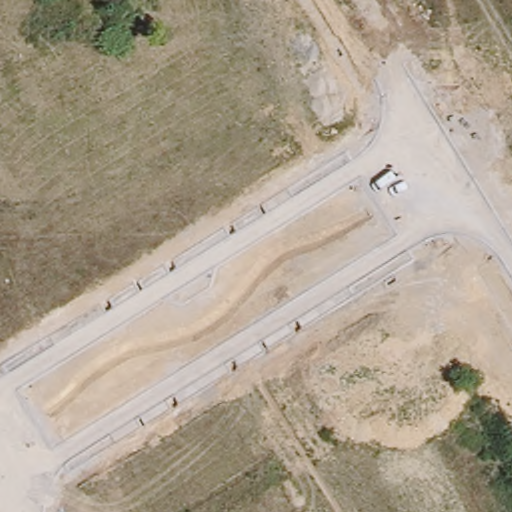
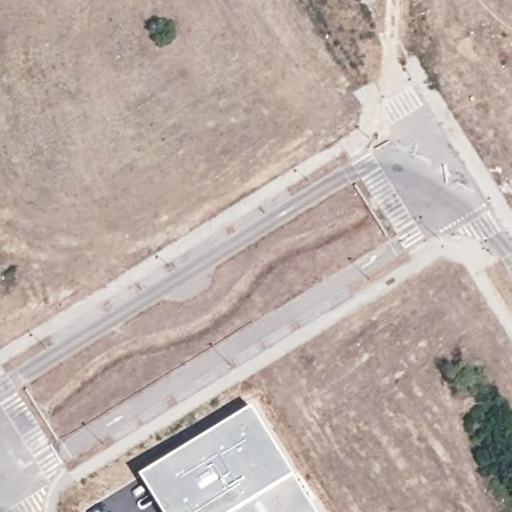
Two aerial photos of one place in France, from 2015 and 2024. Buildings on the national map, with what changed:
new [(251,404),(317,512),(160,512),(138,474),(251,404)]

